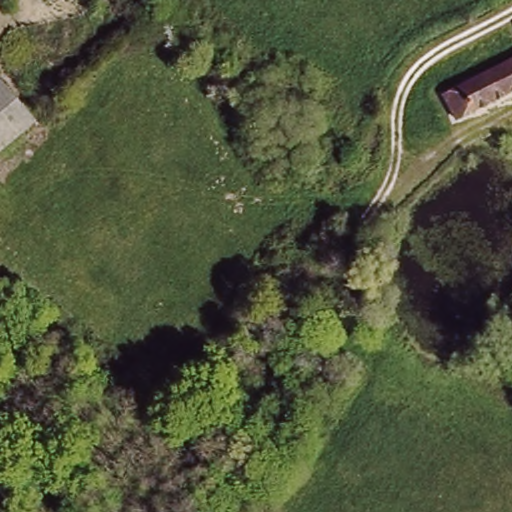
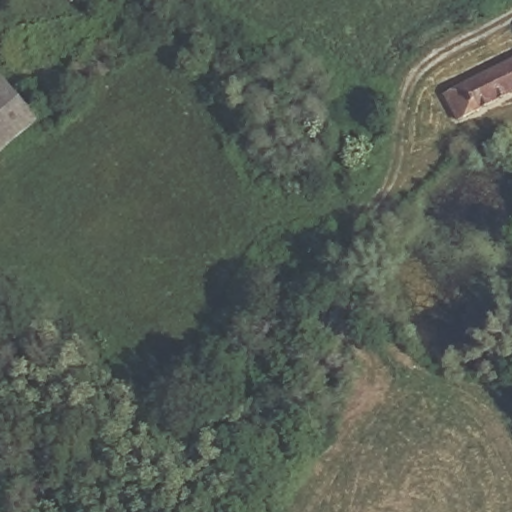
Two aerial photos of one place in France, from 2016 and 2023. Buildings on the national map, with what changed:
unchanged [(512,56),(512,91),(458,122),(442,93),(512,56)]
unchanged [(0,79),(40,121),(0,156),(0,79)]

